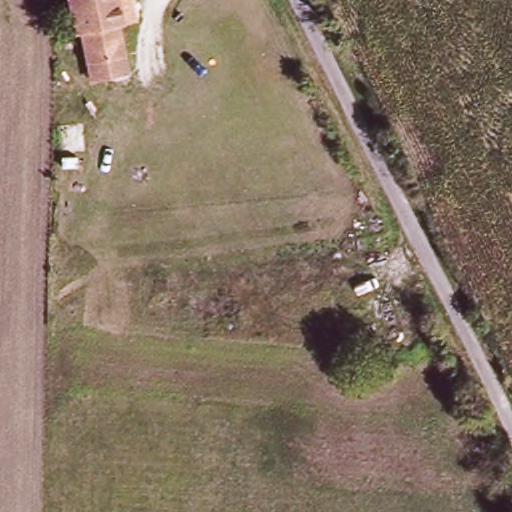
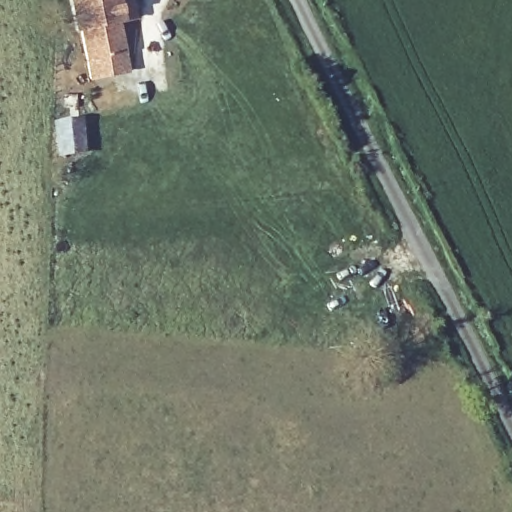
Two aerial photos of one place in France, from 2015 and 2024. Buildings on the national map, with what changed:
unchanged [(69,36),(61,0),(135,0),(140,20),(119,26),(79,34),(69,36)]
unchanged [(119,26),(129,71),(89,81),(79,34),(119,26)]

